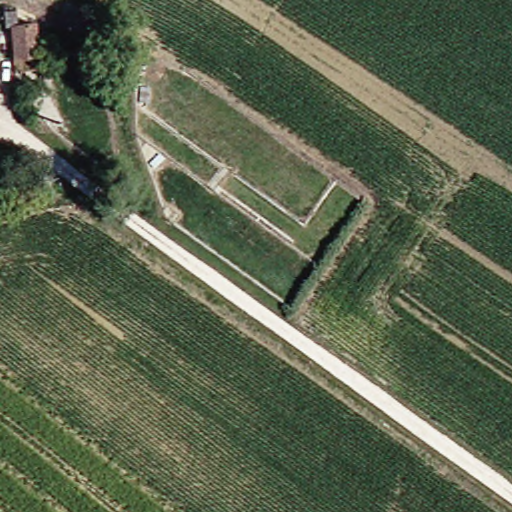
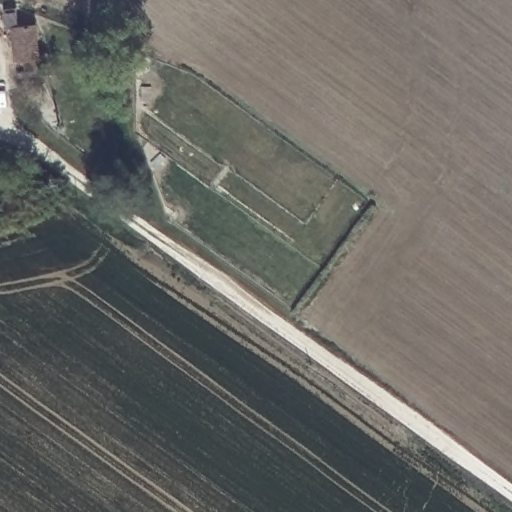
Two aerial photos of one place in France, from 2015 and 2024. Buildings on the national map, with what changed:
unchanged [(43,73),(15,75),(11,27),(9,28),(8,7),(17,7),(18,27),(41,27),(43,73)]

